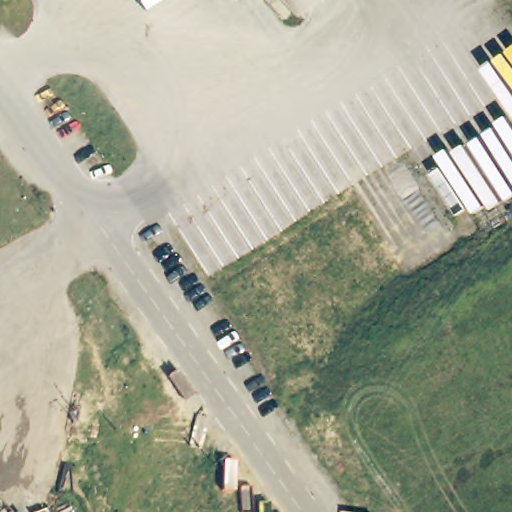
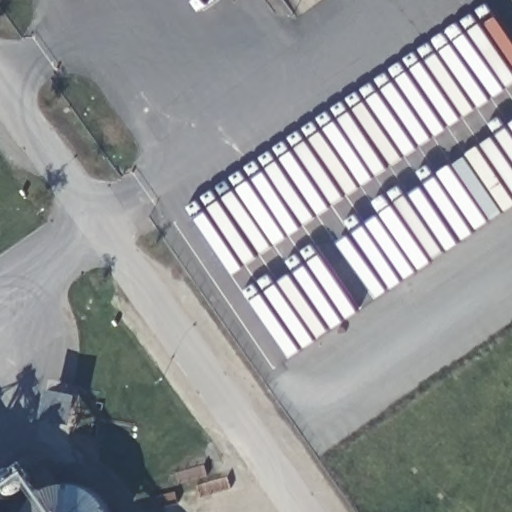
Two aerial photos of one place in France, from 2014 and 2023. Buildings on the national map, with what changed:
new [(38,493),(39,493),(52,484),(67,482),(86,484),(98,492),(110,505),(114,512),(26,512),(27,507),(38,493)]

